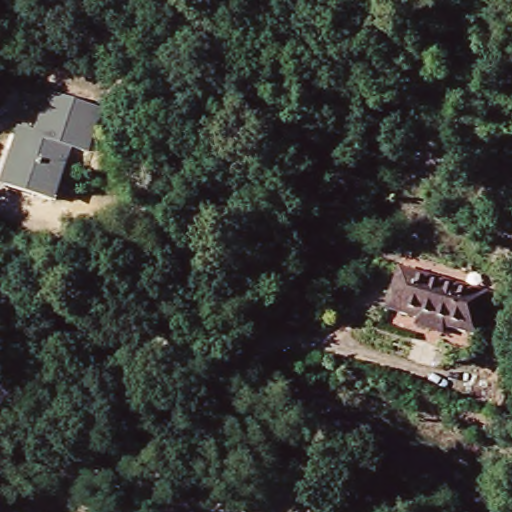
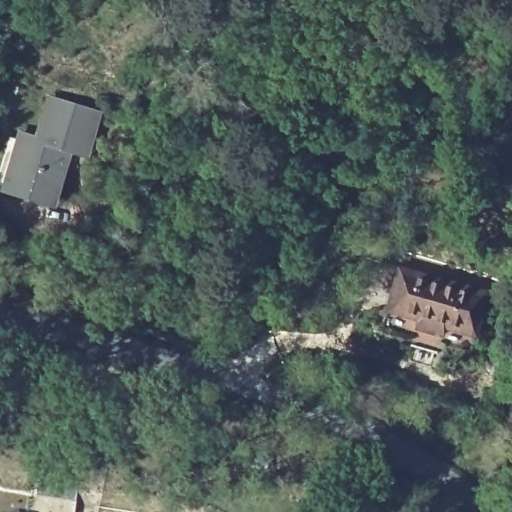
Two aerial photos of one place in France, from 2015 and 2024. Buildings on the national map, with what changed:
unchanged [(19,128),(37,133),(50,92),(102,111),(89,158),(71,153),(54,207),(0,192),(19,128)]
unchanged [(476,338),(387,310),(401,266),(489,294),(476,338)]

